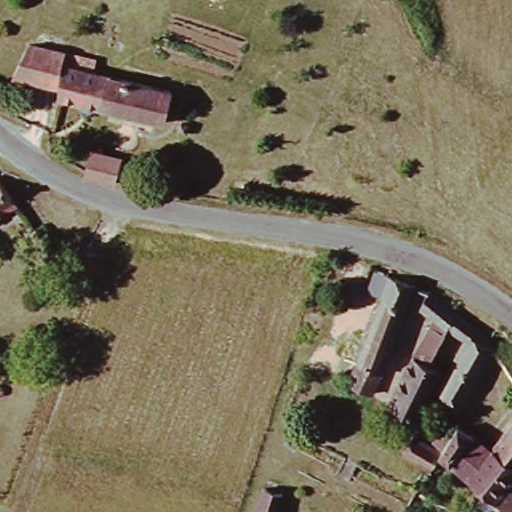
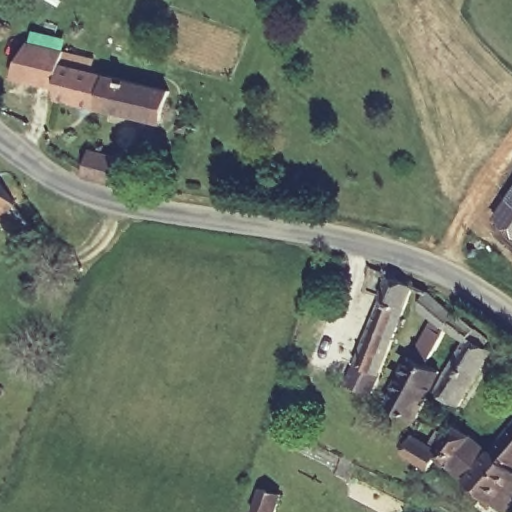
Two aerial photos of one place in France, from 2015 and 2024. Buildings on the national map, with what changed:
unchanged [(92,60),(89,74),(171,94),(161,130),(54,107),(57,96),(6,84),(24,46),(92,60)]
unchanged [(81,178),(87,154),(116,161),(111,187),(91,184),(81,178)]
unchanged [(0,210),(0,187),(12,202),(0,210)]
new [(512,189),(512,235),(491,219),(512,189)]
unchanged [(377,305),(359,299),(367,279),(386,284),(414,293),(381,382),(372,404),(347,394),(354,372),(377,305)]
unchanged [(439,337),(422,375),(437,384),(427,401),(412,432),(380,417),(422,323),(412,318),(422,299),(437,305),(434,314),(446,323),(439,337)]
unchanged [(453,416),(427,401),(437,384),(440,384),(460,349),(439,337),(446,323),(492,358),(453,416)]
unchanged [(397,462),(412,432),(444,449),(434,463),(428,476),(397,462)]
unchanged [(454,433),(483,456),(487,453),(496,452),(512,432),(512,512),(496,512),(434,463),(444,449),(454,433)]
unchanged [(267,489),(287,494),(281,512),(258,512),(267,489)]

